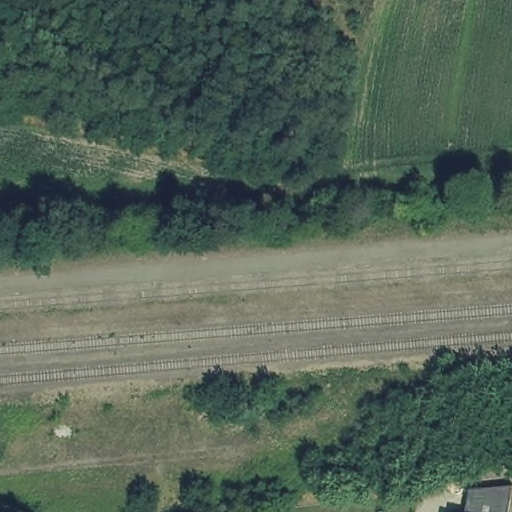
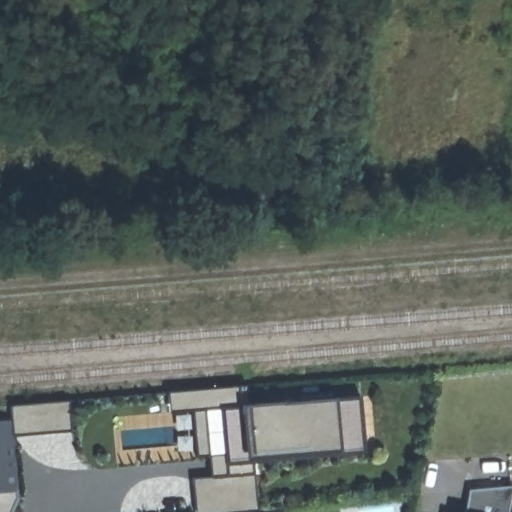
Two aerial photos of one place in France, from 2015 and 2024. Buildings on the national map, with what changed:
new [(254,464),(258,510),(234,512),(198,512),(196,481),(213,478),(211,457),(199,457),(195,411),(172,413),(172,395),(248,387),(248,395),(243,407),(359,401),(363,455),(254,464)]
new [(12,406),(69,402),(72,433),(16,436),(20,498),(14,512),(0,512),(0,423),(13,422),(12,406)]
unchanged [(511,486),(507,512),(466,512),(470,490),(511,486)]

